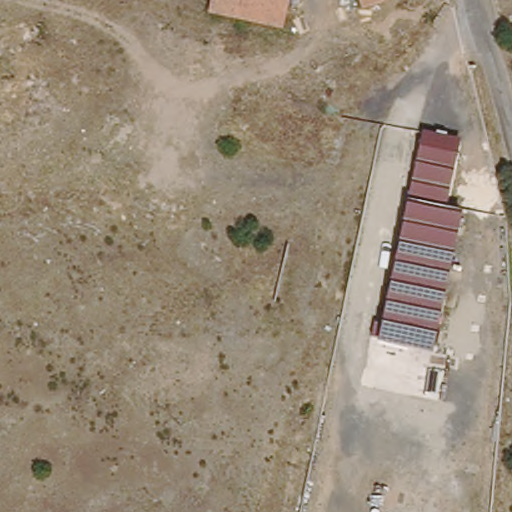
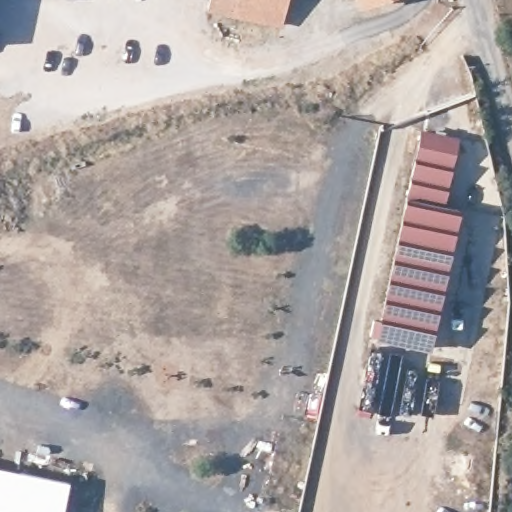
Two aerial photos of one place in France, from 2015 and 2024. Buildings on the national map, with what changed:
unchanged [(204,5),(204,0),(283,0),(280,19),(204,5)]
unchanged [(361,0),(379,0),(363,5),(361,0)]
unchanged [(452,141),(437,208),(399,199),(413,133),(452,141)]
unchanged [(437,208),(453,212),(422,352),(371,340),(399,199),(437,208)]
new [(63,512),(0,512),(0,467),(70,482),(63,512)]

